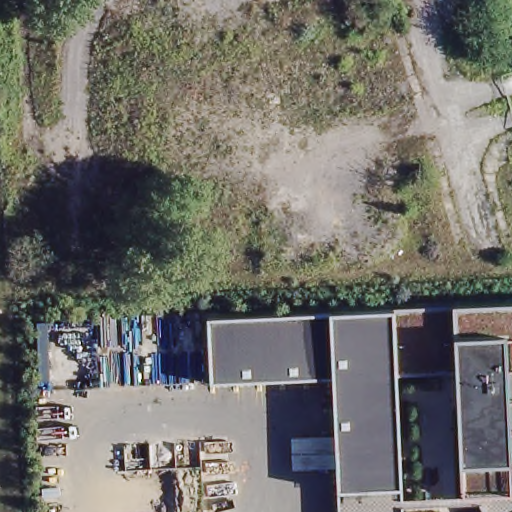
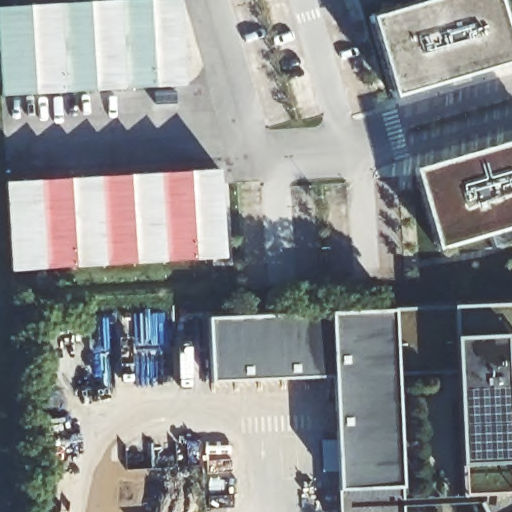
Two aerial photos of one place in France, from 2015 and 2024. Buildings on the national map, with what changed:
new [(186,89),(2,96),(0,50),(0,4),(65,0),(185,0),(186,89)]
new [(404,0),(501,0),(512,38),(512,56),(393,91),(369,10),(404,0)]
new [(439,247),(414,164),(512,135),(512,225),(439,247)]
demolished [(506,137),(512,135),(512,158),(506,137)]
new [(219,164),(224,252),(11,265),(6,177),(219,164)]
unchanged [(392,308),(454,306),(512,303),(512,369),(505,370),(509,462),(509,474),(512,480),(512,512),(485,512),(476,494),(461,494),(461,464),(456,371),(395,373),(401,485),(402,512),(338,512),(337,490),(333,376),(210,382),(206,316),(329,312),(392,308)]

